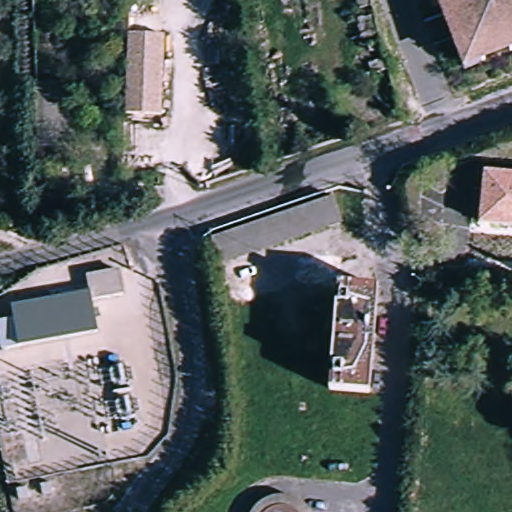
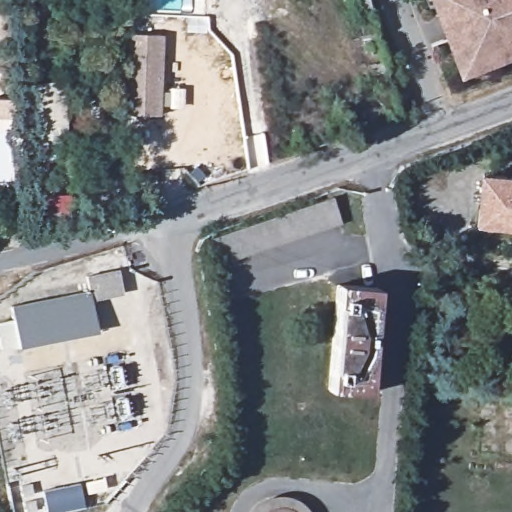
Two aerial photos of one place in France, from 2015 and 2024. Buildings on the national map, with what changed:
unchanged [(435,0),(512,0),(512,54),(466,73),(435,0)]
unchanged [(373,14),(378,39),(359,41),(355,18),(373,14)]
unchanged [(165,35),(161,118),(127,116),(131,34),(165,35)]
unchanged [(61,82),(65,144),(55,162),(35,164),(27,87),(61,82)]
unchanged [(481,177),(512,179),(512,228),(477,224),(481,177)]
unchanged [(67,194),(70,225),(45,230),(36,198),(67,194)]
unchanged [(221,266),(207,239),(329,197),(338,224),(221,266)]
unchanged [(124,294),(92,300),(99,333),(18,349),(11,304),(88,290),(85,276),(119,269),(124,294)]
unchanged [(329,393),(336,288),(376,290),(369,395),(329,393)]
new [(43,489),(80,484),(86,507),(60,512),(45,512),(43,489)]

